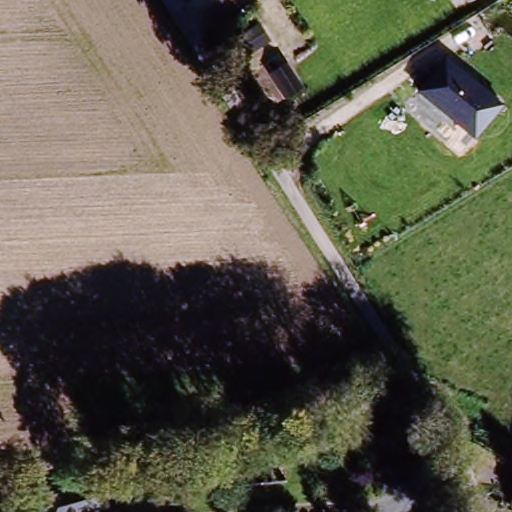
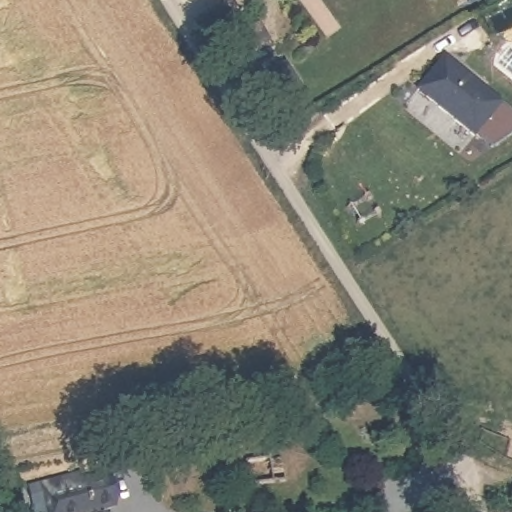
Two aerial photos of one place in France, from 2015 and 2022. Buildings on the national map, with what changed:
unchanged [(457,0),(466,0),(460,4),(457,0)]
unchanged [(446,57),(502,105),(473,137),(416,89),(446,57)]
unchanged [(118,512),(46,512),(40,487),(77,478),(90,475),(92,483),(118,477),(125,511),(118,512)]

